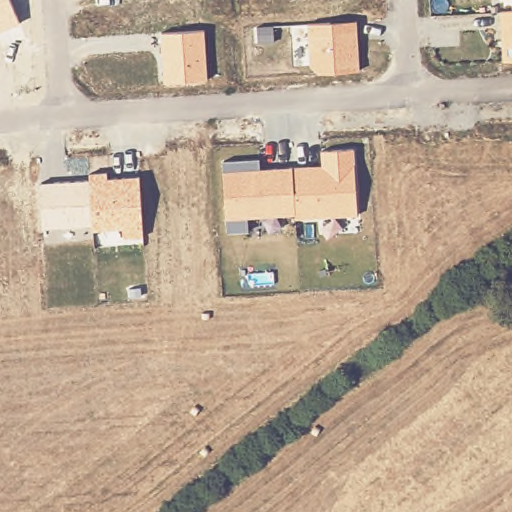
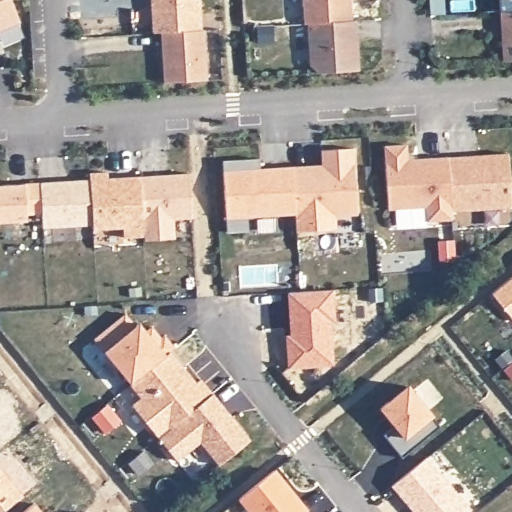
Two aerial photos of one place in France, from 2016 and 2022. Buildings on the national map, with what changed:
unchanged [(21,23),(0,31),(0,0),(11,0),(21,23)]
new [(203,30),(161,32),(152,32),(150,0),(201,0),(203,30)]
unchanged [(352,20),(357,20),(359,69),(318,74),(310,67),(308,25),(304,25),(303,0),(351,0),(352,20)]
unchanged [(509,11),(509,0),(512,0),(512,61),(503,62),(500,11),(509,11)]
unchanged [(161,32),(206,30),(209,80),(165,83),(161,32)]
new [(406,144),(407,159),(448,157),(451,211),(451,219),(427,221),(426,206),(388,209),(384,145),(406,144)]
unchanged [(228,234),(224,160),(261,158),(261,167),(292,166),(322,164),(320,149),(355,148),(358,216),(295,219),(295,216),(249,218),(249,232),(228,234)]
new [(507,153),(511,207),(451,211),(448,157),(507,153)]
unchanged [(40,183),(90,179),(90,172),(107,172),(107,178),(141,176),(145,238),(124,240),(123,229),(92,231),(91,225),(42,228),(40,183)]
new [(190,172),(194,219),(175,220),(176,239),(145,241),(145,238),(141,176),(190,172)]
new [(24,182),(40,183),(41,214),(28,214),(28,221),(0,222),(0,184),(24,182)]
new [(512,319),(491,293),(512,276),(512,319)]
new [(133,405),(141,398),(130,384),(103,351),(95,338),(126,313),(137,323),(140,321),(147,330),(152,325),(162,337),(165,334),(176,346),(172,350),(197,382),(202,378),(252,441),(220,467),(201,442),(176,461),(158,438),(160,436),(133,405)]
new [(394,425),(378,408),(408,384),(434,415),(441,426),(404,458),(384,435),(394,425)]
new [(472,508),(467,512),(414,512),(392,486),(427,456),(472,508)]
new [(276,468),(310,510),(307,512),(247,512),(238,500),(276,468)]

